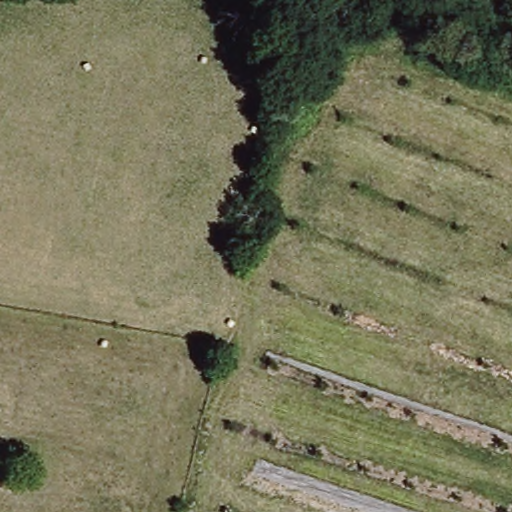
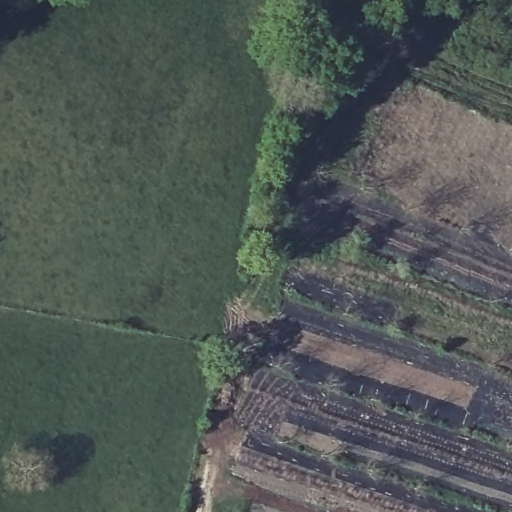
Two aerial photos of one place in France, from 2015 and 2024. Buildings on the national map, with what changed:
[]

